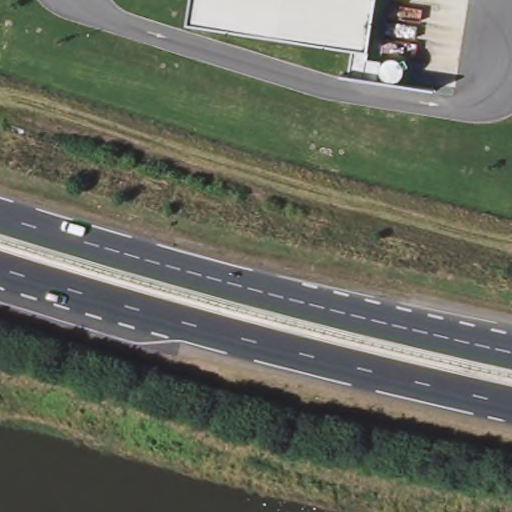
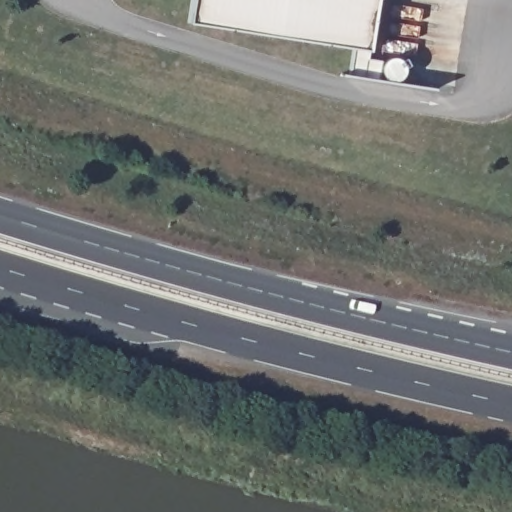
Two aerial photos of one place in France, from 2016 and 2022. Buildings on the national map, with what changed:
unchanged [(377,0),(370,48),(369,60),(383,62),(389,59),(397,59),(402,63),(405,69),(402,76),(398,81),(389,81),(373,79),(348,75),(352,48),(188,24),(192,0),(377,0)]

